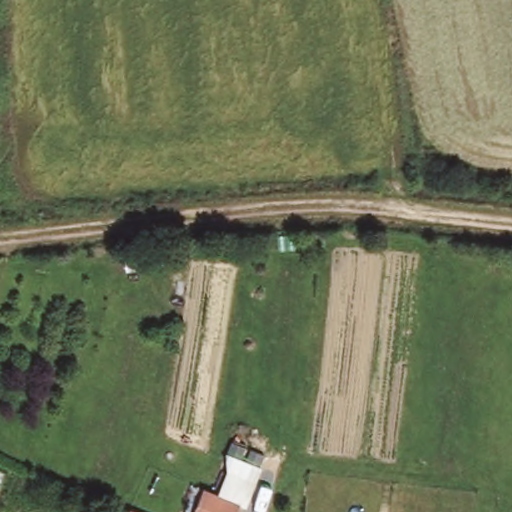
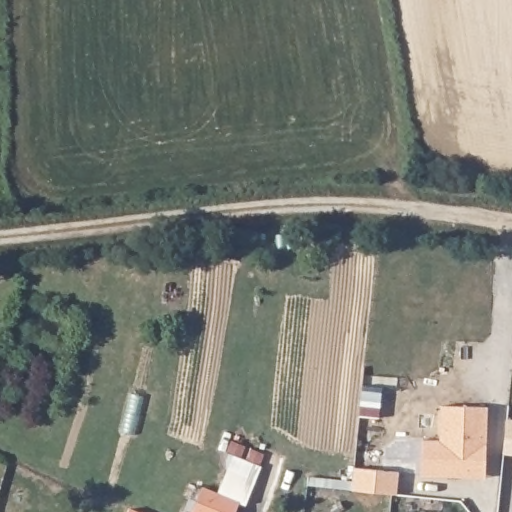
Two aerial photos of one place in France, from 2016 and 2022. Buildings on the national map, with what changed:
new [(489,406),(487,478),(422,476),(423,440),(441,440),(442,406),(489,406)]
new [(512,455),(504,454),(508,419),(512,419),(512,455)]
unchanged [(218,491),(224,476),(227,467),(256,478),(252,487),(246,502),(241,500),(236,512),(192,512),(203,485),(218,491)]
new [(399,472),(397,495),(353,490),(355,467),(399,472)]
unchanged [(130,511),(131,508),(140,512),(130,512),(130,511)]

